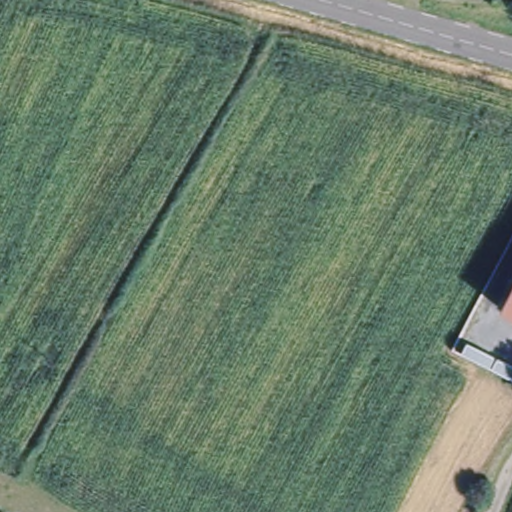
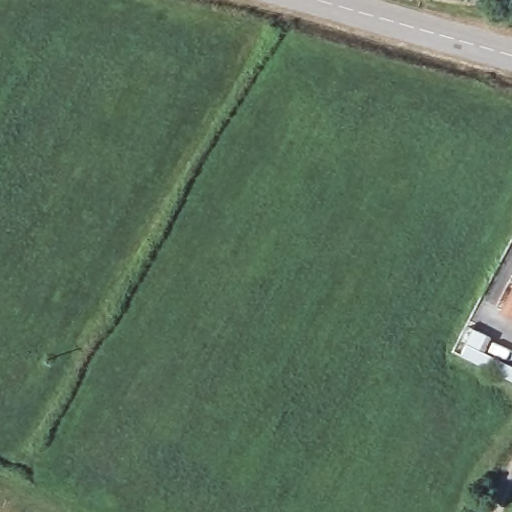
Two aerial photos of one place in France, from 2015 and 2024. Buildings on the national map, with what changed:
unchanged [(512,292),(512,305),(506,302),(512,292)]

